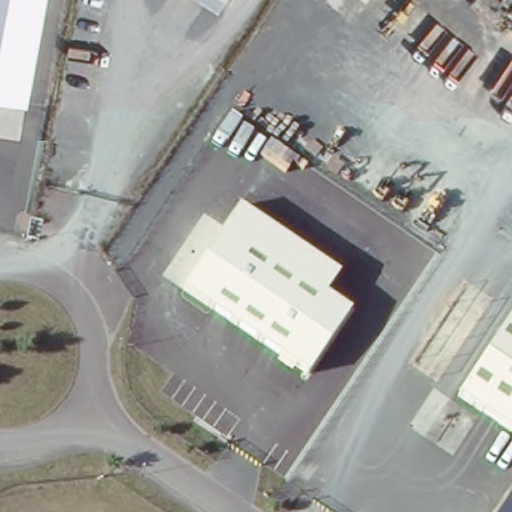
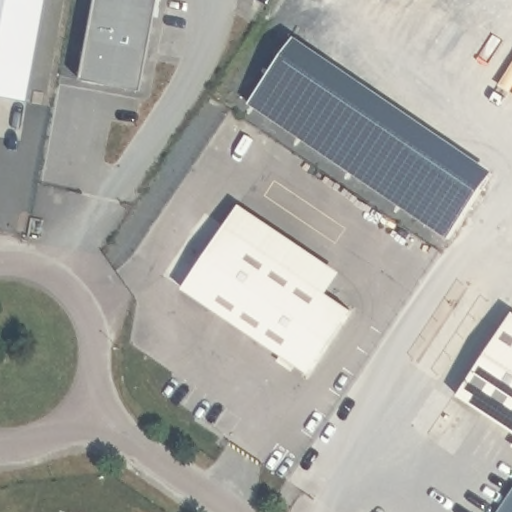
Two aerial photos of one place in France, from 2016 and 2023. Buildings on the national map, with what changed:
unchanged [(0,97),(0,0),(46,0),(28,102),(0,97)]
new [(82,82),(97,0),(159,0),(141,91),(82,82)]
demolished [(201,0),(223,0),(216,11),(201,0)]
new [(295,43),(475,166),(426,238),(250,111),(295,43)]
unchanged [(342,272),(326,297),(350,312),(307,376),(182,292),(240,206),(342,272)]
unchanged [(512,314),(512,434),(457,395),(512,314)]
unchanged [(512,490),(512,512),(498,512),(512,490)]

